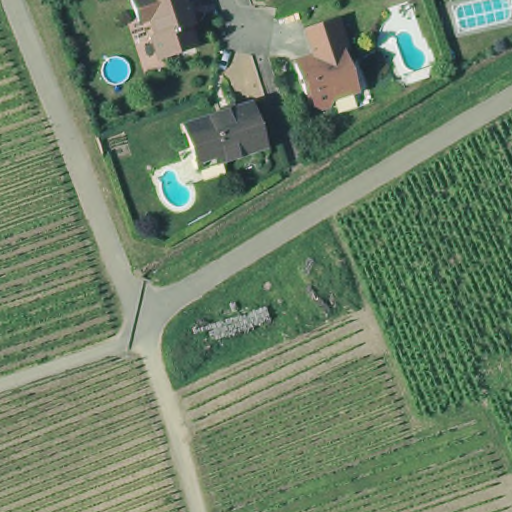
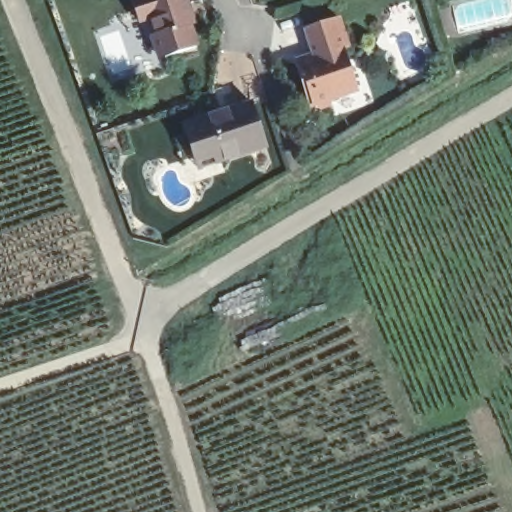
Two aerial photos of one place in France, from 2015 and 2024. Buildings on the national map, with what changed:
unchanged [(192,17),(198,37),(168,47),(166,48),(165,46),(161,47),(154,27),(158,25),(153,7),(141,11),(140,9),(137,0),(191,0),(196,14),(192,17)]
unchanged [(329,90),(326,98),(317,100),(311,96),(306,98),(293,54),(311,48),(303,21),(336,10),(346,38),(340,40),(346,58),(354,82),(349,83),(329,90)]
unchanged [(196,153),(186,121),(254,98),(269,142),(224,156),(199,165),(196,153)]

